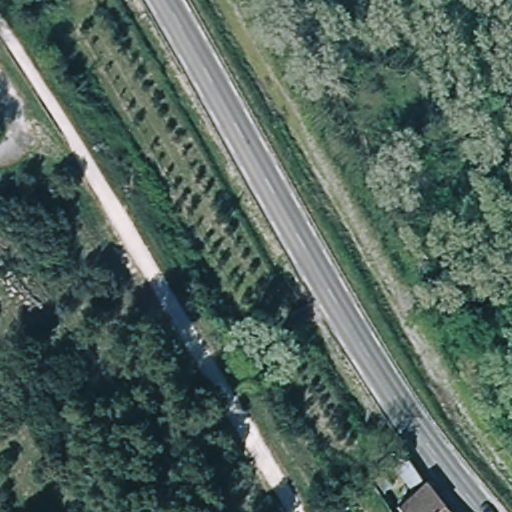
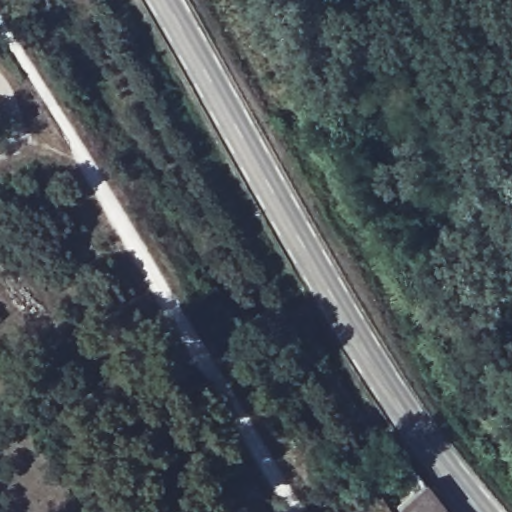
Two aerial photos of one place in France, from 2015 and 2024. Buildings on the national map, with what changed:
unchanged [(438,508),(444,512),(392,512),(387,509),(409,491),(380,463),(395,450),(435,501),(438,508)]

